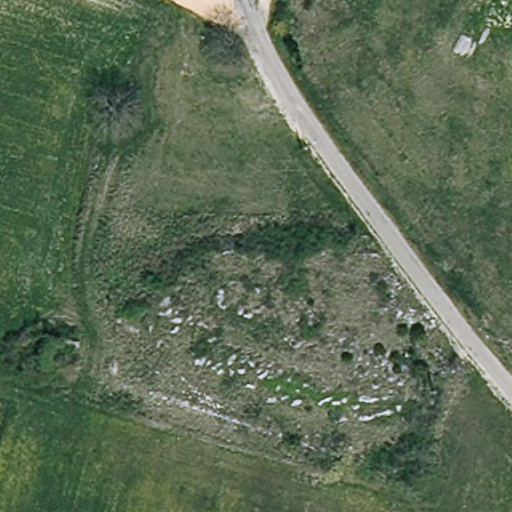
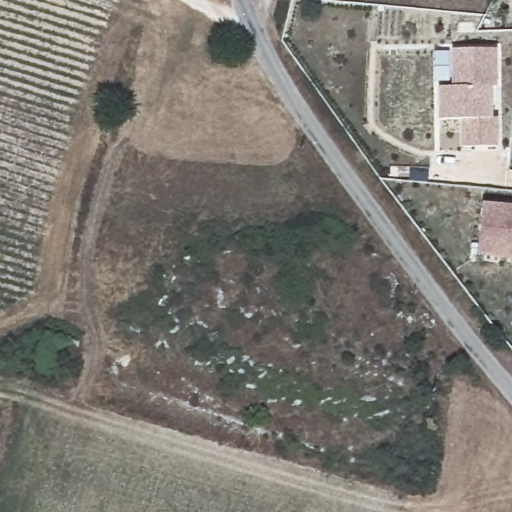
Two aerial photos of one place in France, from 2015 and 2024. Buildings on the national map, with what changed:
new [(451,82),(450,44),(493,44),(493,83),(488,83),(488,113),(494,113),(494,142),(460,143),(460,114),(437,115),(437,81),(451,82)]
new [(512,259),(476,255),(481,201),(512,205),(512,259)]

